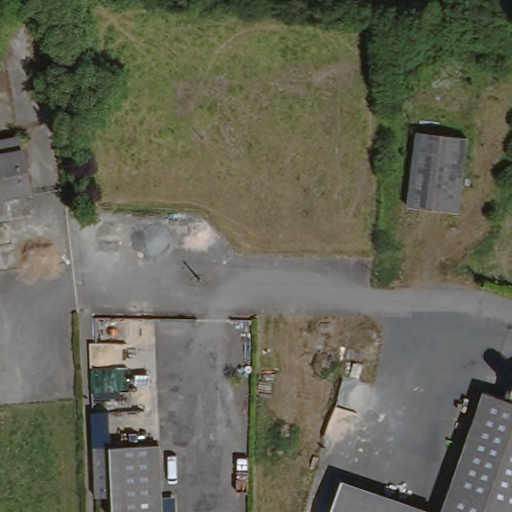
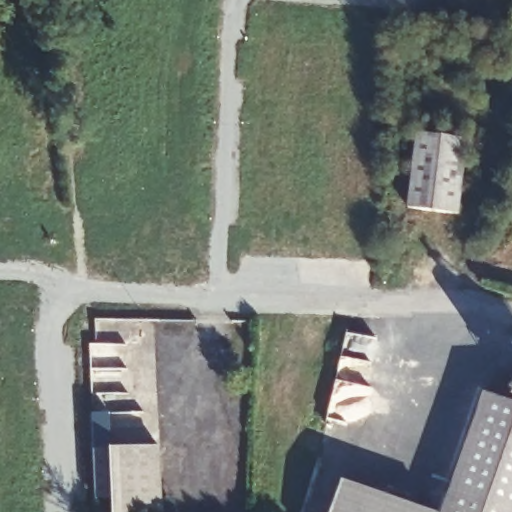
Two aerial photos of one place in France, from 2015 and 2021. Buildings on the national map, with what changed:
unchanged [(426,131),(474,140),(460,212),(412,205),(426,131)]
demolished [(25,136),(34,194),(10,198),(11,220),(0,222),(0,140),(25,136)]
unchanged [(492,391),(511,397),(512,398),(512,512),(448,512),(492,391)]
unchanged [(512,398),(511,397),(512,395),(512,398)]
unchanged [(86,445),(151,443),(155,512),(108,512),(108,496),(86,495),(86,445)]
unchanged [(422,504),(443,512),(336,512),(348,477),(422,504)]

